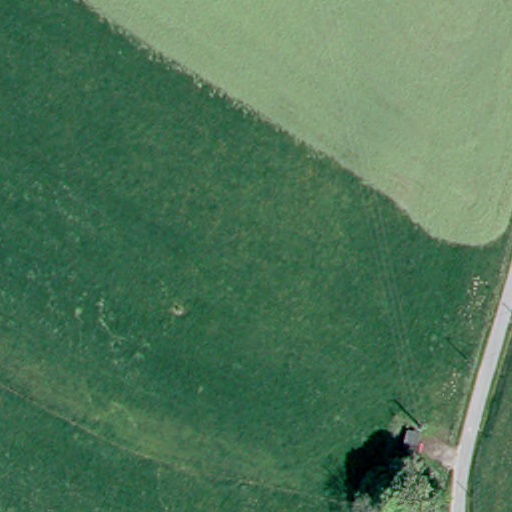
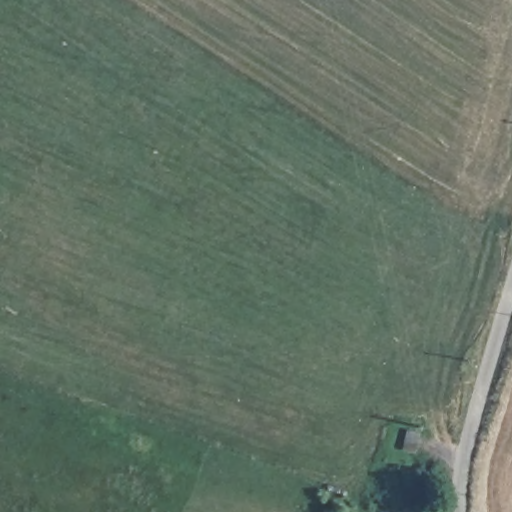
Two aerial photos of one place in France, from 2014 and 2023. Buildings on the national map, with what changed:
unchanged [(405,452),(405,445),(408,431),(420,433),(418,447),(417,454),(405,452)]

